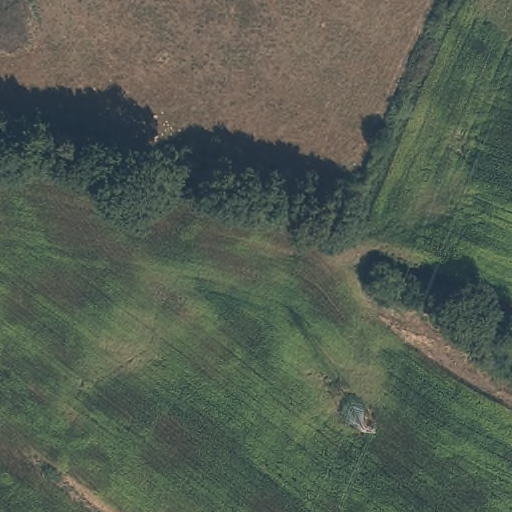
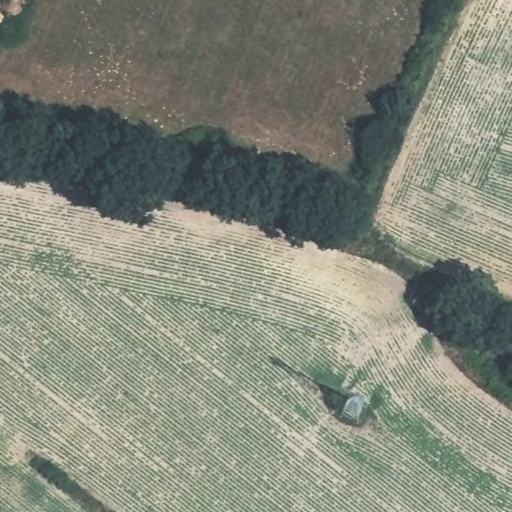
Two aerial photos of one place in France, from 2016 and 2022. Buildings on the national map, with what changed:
[]

